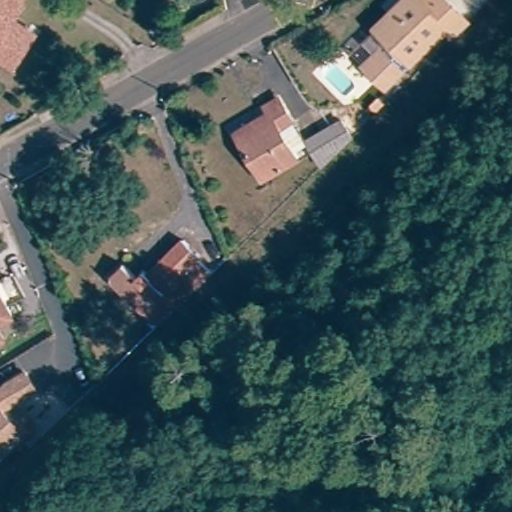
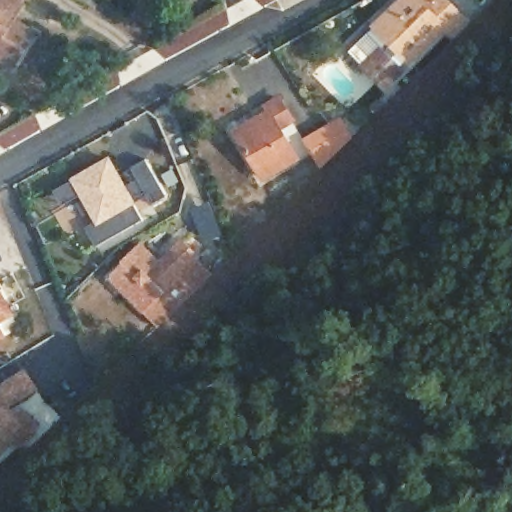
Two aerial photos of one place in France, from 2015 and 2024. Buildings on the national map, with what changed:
unchanged [(14,7),(4,21),(25,36),(2,66),(0,65),(0,0),(14,0),(11,5),(14,7)]
unchanged [(408,61),(401,68),(404,71),(386,89),(365,67),(383,49),(385,51),(392,45),(376,29),(406,0),(447,0),(471,25),(455,39),(446,30),(433,43),(426,50),(411,65),(408,61)]
unchanged [(266,184),(240,140),(273,121),(268,111),(279,104),(295,131),(282,139),(298,166),(266,184)]
unchanged [(309,150),(340,129),(354,143),(324,172),(309,150)]
new [(128,185),(138,179),(133,166),(146,159),(166,196),(153,205),(147,196),(133,205),(141,219),(97,245),(88,228),(96,223),(80,195),(63,205),(55,190),(72,181),(70,179),(110,156),(128,185)]
unchanged [(137,312),(104,280),(120,264),(132,276),(140,271),(147,275),(179,244),(195,257),(193,260),(208,276),(177,306),(154,328),(137,312)]
unchanged [(0,323),(0,300),(9,318),(0,323)]
unchanged [(31,433),(17,446),(12,440),(0,451),(0,387),(5,382),(22,372),(33,388),(16,398),(1,408),(6,413),(17,406),(29,419),(31,433)]

